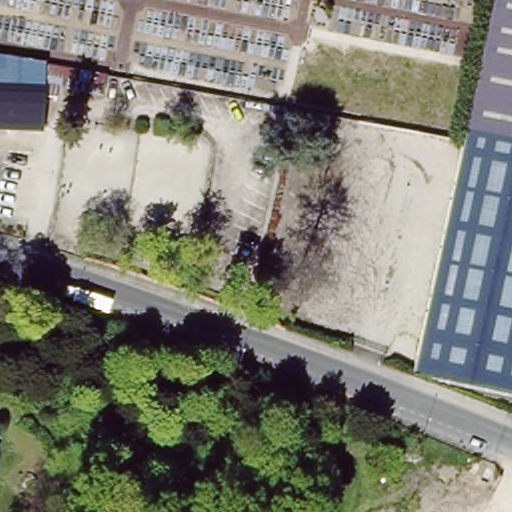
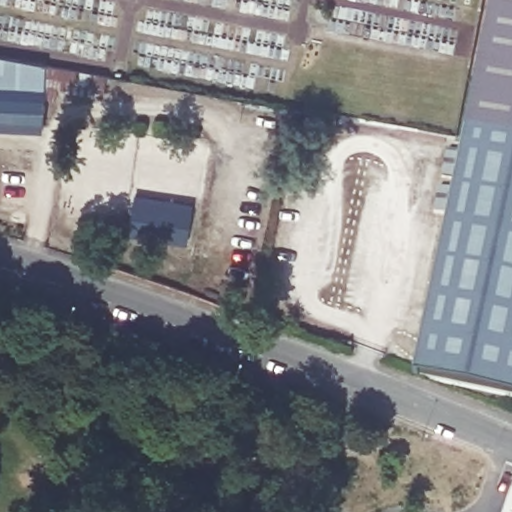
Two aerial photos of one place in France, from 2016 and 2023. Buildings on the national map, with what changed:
unchanged [(492,4),(493,0),(512,0),(512,8),(492,4)]
unchanged [(473,137),(475,130),(487,34),(490,16),(492,4),(512,8),(512,147),(473,137)]
unchanged [(106,75),(103,96),(47,93),(45,131),(0,130),(0,57),(41,63),(106,75)]
unchanged [(465,140),(473,137),(512,147),(512,395),(413,375),(458,181),(465,140)]
new [(187,242),(130,233),(135,195),(193,203),(187,242)]

